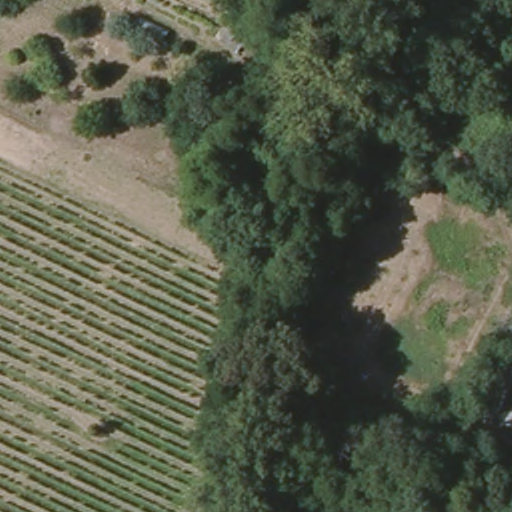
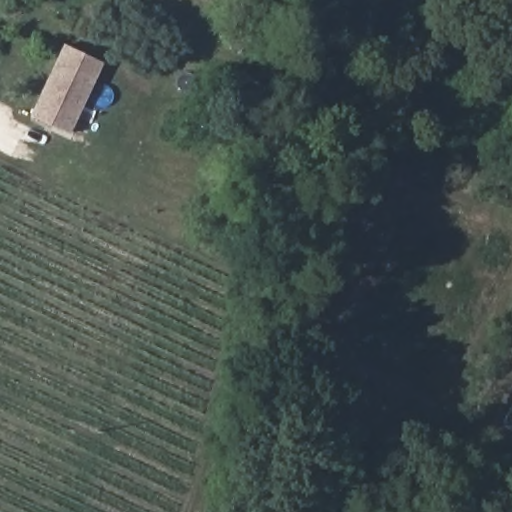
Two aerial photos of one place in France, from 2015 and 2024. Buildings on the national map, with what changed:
new [(104,63),(70,124),(38,106),(71,46),(104,63)]

